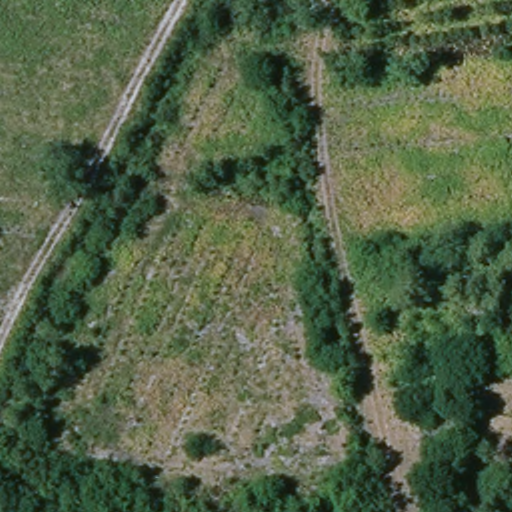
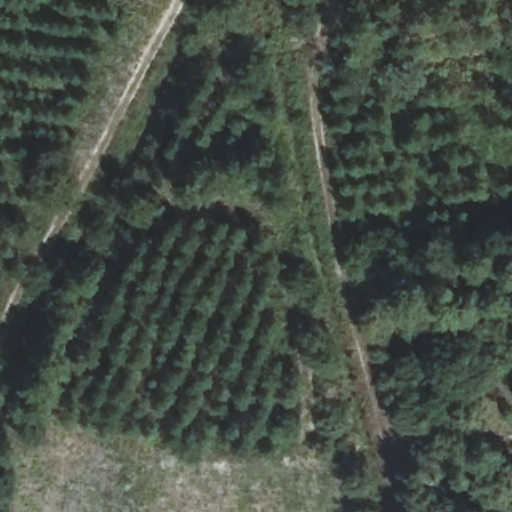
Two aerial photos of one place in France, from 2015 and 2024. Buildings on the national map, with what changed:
unchanged [(477,297),(480,317),(452,322),(449,303),(477,297)]

